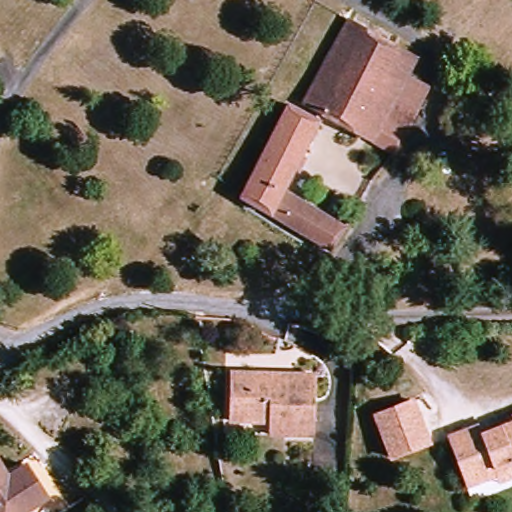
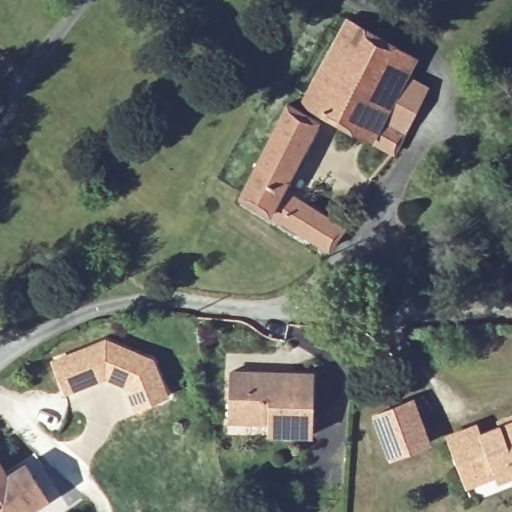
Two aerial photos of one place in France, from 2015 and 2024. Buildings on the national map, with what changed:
unchanged [(396,153),(303,101),(350,19),(417,58),(384,116),(410,131),(396,153)]
unchanged [(432,89),(410,131),(384,116),(407,75),(432,89)]
unchanged [(318,119),(284,188),(344,224),(328,246),(241,189),(290,105),(300,110),(318,119)]
new [(126,386),(105,376),(66,392),(53,363),(104,342),(152,360),(166,397),(136,409),(126,386)]
unchanged [(313,437),(232,434),(231,374),(313,377),(313,437)]
unchanged [(432,442),(390,459),(373,414),(416,398),(432,442)]
unchanged [(454,444),(486,430),(488,436),(509,427),(507,424),(512,421),(512,466),(500,472),(501,476),(472,488),(454,444)]
unchanged [(12,476),(35,464),(57,498),(32,512),(0,512),(0,456),(12,476)]

